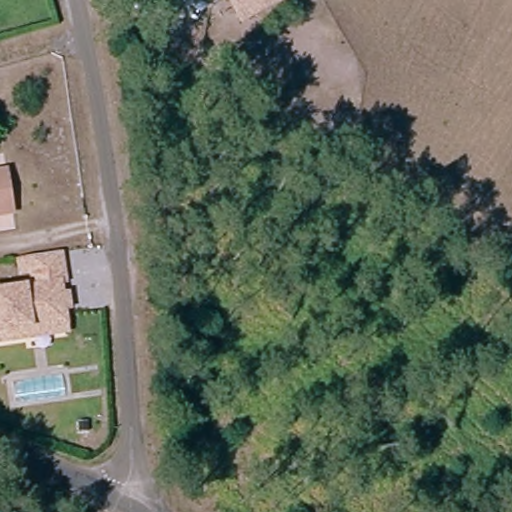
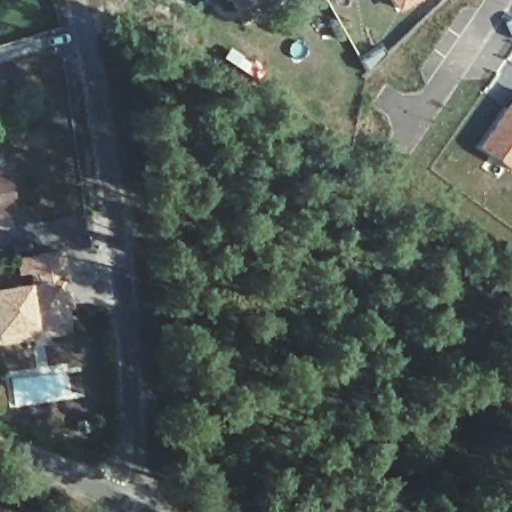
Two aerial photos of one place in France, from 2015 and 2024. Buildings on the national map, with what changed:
unchanged [(219,0),(225,0),(220,2),(219,0)]
unchanged [(225,0),(281,0),(242,24),(225,0)]
new [(389,0),(422,0),(397,15),(389,0)]
new [(512,174),(475,147),(512,99),(512,174)]
unchanged [(5,169),(13,210),(0,212),(0,169),(5,169)]
unchanged [(27,337),(0,343),(0,294),(32,286),(29,271),(20,273),(16,258),(57,250),(64,281),(59,282),(67,320),(69,328),(27,337)]

